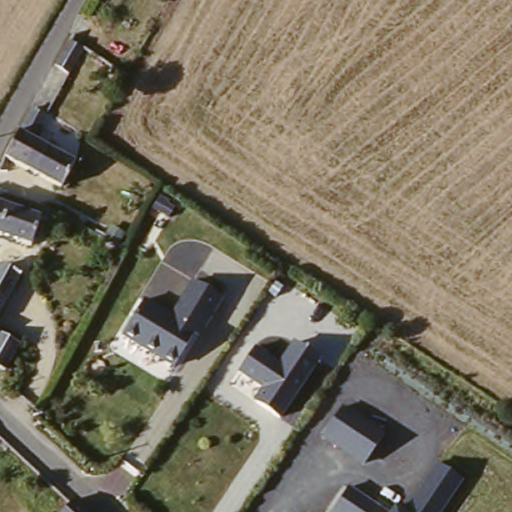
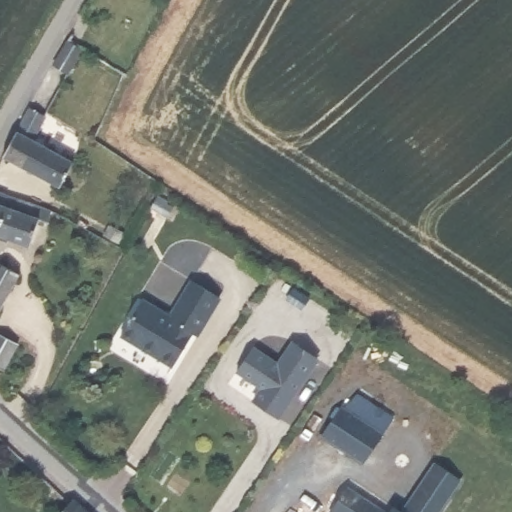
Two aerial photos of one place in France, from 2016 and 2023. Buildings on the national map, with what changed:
unchanged [(92,54),(77,79),(62,71),(77,45),(92,54)]
unchanged [(50,117),(36,142),(78,164),(63,193),(3,159),(20,127),(32,107),(50,117)]
unchanged [(49,243),(39,236),(27,257),(0,243),(0,194),(7,199),(24,209),(46,222),(58,228),(49,243)]
unchanged [(1,253),(25,266),(0,314),(0,256),(1,253)]
unchanged [(219,301),(196,337),(192,336),(171,369),(121,338),(142,303),(170,320),(192,284),(219,301)]
unchanged [(8,317),(27,328),(8,359),(0,353),(0,331),(8,317)]
unchanged [(286,411),(262,396),(270,383),(246,367),(262,343),(286,360),(301,338),(325,353),(304,385),(295,397),(286,411)]
unchanged [(340,407),(383,434),(363,465),(321,440),(340,407)]
unchanged [(393,507),(401,511),(432,465),(461,483),(442,512),(390,512),(393,507)]
unchanged [(384,512),(329,512),(346,488),(384,512)]
unchanged [(81,497),(97,512),(64,512),(81,497)]

